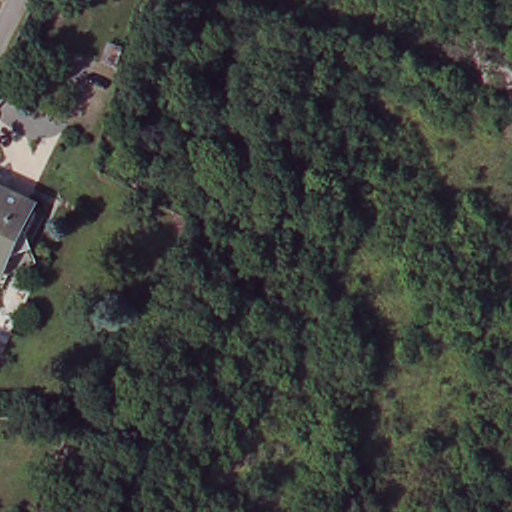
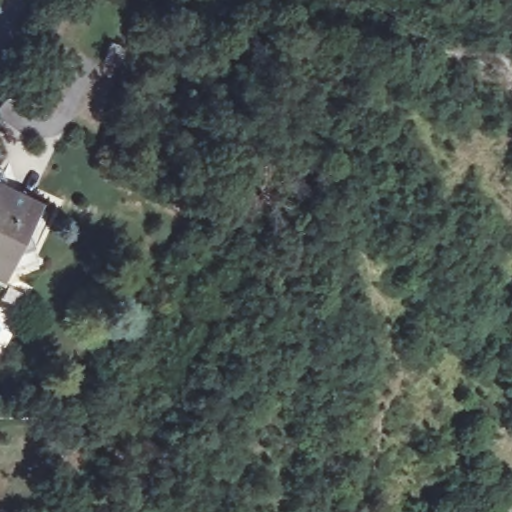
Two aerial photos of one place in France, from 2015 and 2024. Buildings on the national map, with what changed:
unchanged [(37,205),(2,277),(0,276),(0,188),(37,205)]

